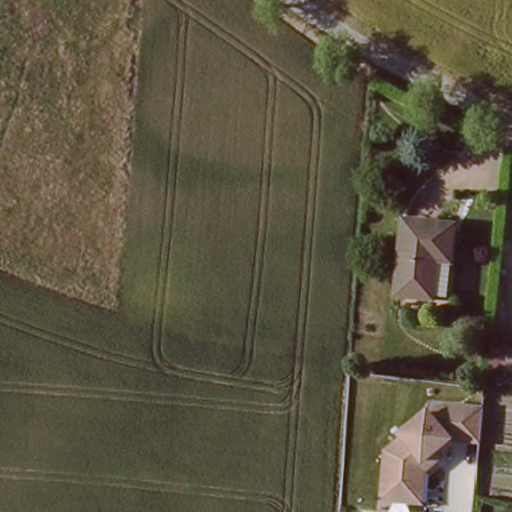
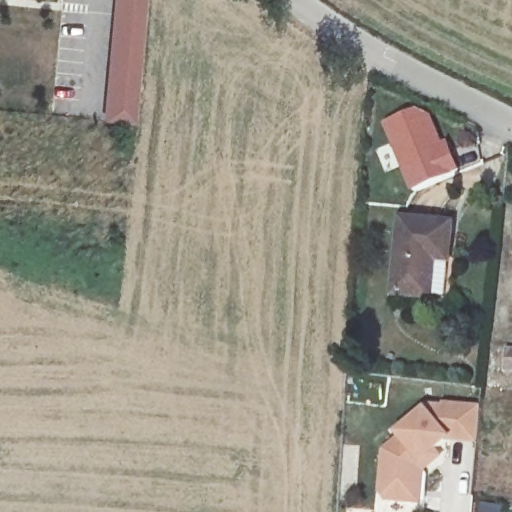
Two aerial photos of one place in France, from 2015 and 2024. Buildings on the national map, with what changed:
new [(109,114),(117,0),(148,0),(141,117),(109,114)]
new [(427,109),(445,144),(449,144),(460,174),(414,193),(384,125),(427,109)]
unchanged [(400,220),(449,227),(445,263),(429,262),(424,301),(390,297),(400,220)]
unchanged [(512,343),(512,378),(504,377),(505,342),(512,343)]
unchanged [(480,449),(444,443),(420,468),(418,505),(390,503),(390,494),(382,492),(386,456),(409,441),(408,432),(439,406),(485,410),(480,449)]

